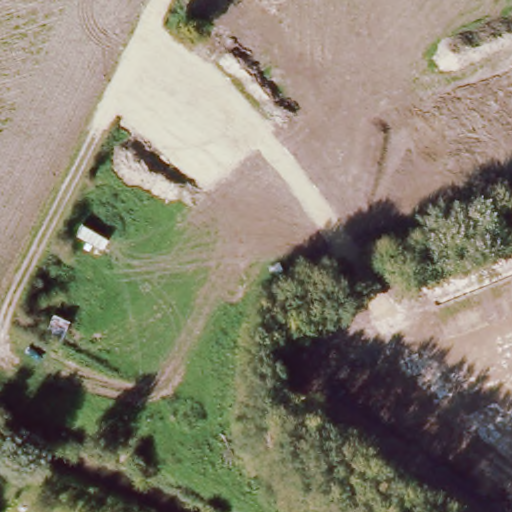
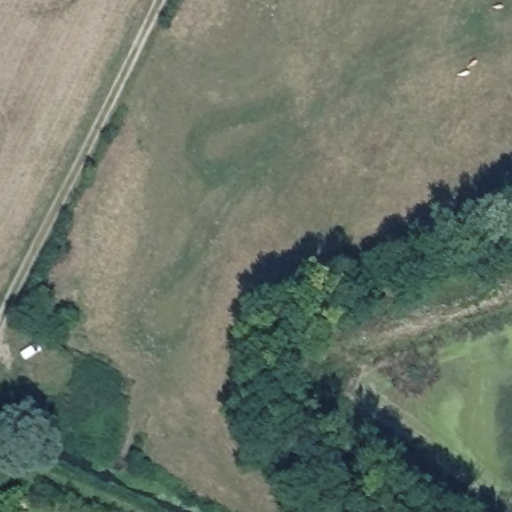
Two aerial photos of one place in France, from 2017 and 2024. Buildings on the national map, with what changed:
unchanged [(117,146),(129,152),(117,173),(106,167),(117,146)]

